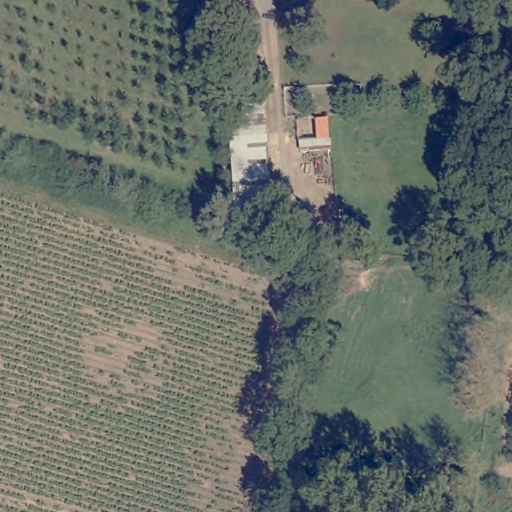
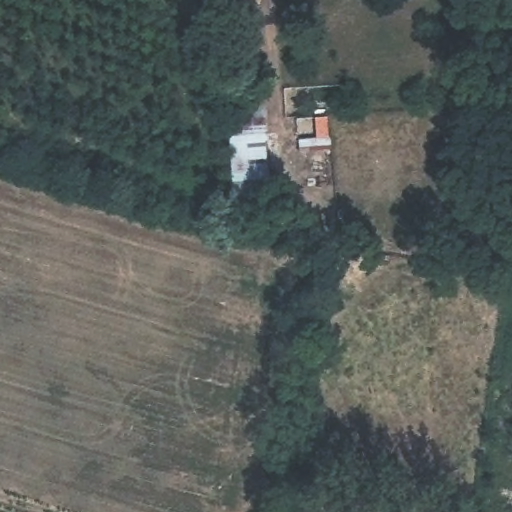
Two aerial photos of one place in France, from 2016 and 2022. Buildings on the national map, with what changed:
unchanged [(274,216),(233,218),(226,114),(267,113),(274,216)]

